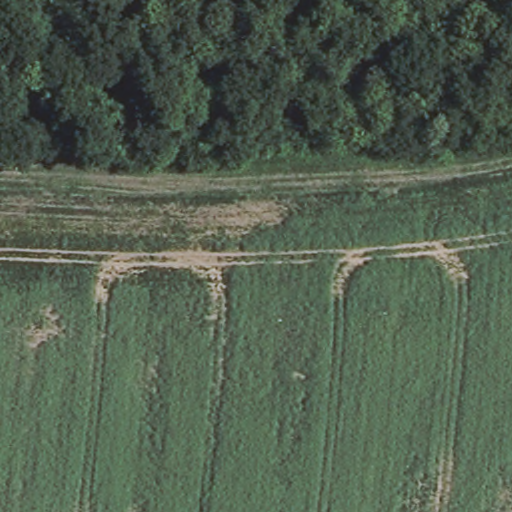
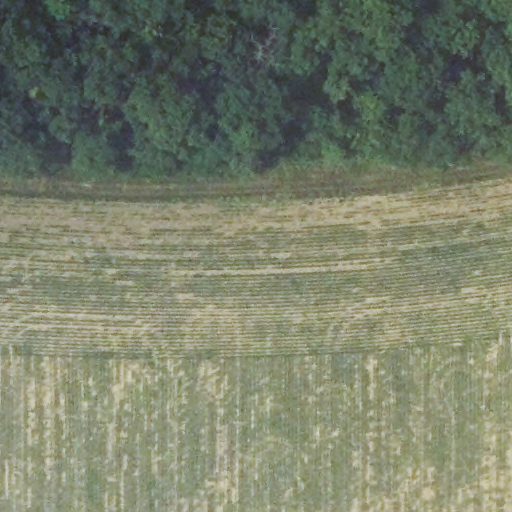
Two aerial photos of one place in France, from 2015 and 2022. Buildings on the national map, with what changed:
[]

